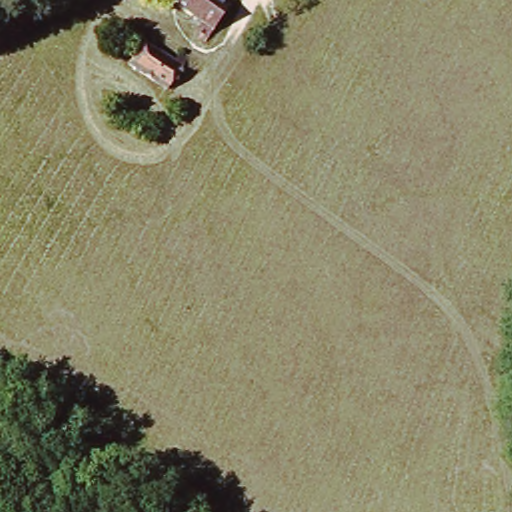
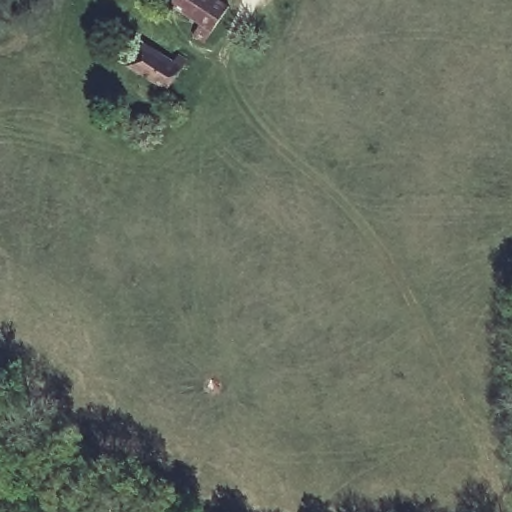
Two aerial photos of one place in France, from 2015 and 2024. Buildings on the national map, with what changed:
unchanged [(195,26),(172,10),(177,3),(172,0),(219,0),(227,5),(204,41),(190,33),(195,26)]
unchanged [(145,35),(183,60),(167,85),(128,61),(131,57),(145,35)]

